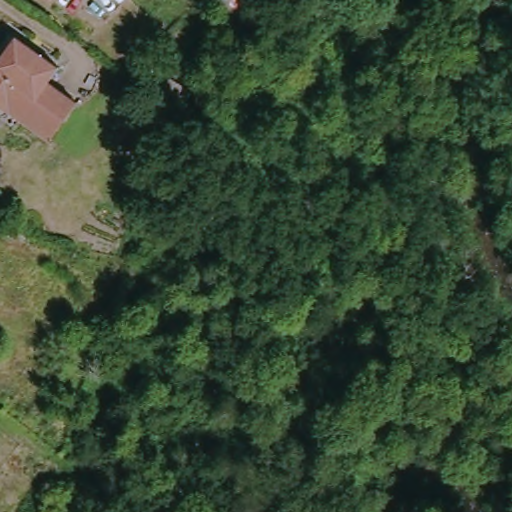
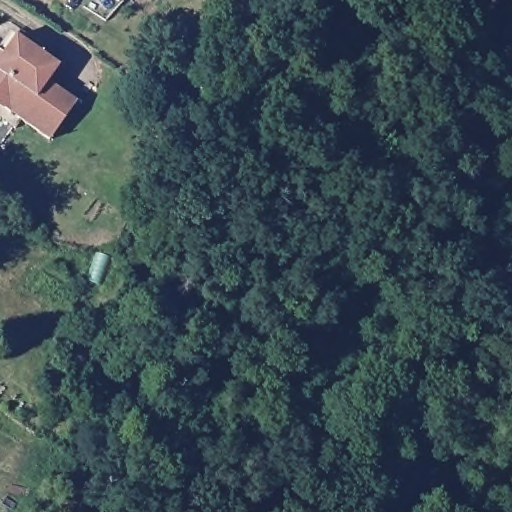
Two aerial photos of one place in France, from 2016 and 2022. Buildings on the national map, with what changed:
unchanged [(54,2),(52,0),(56,0),(54,2)]
unchanged [(218,9),(187,41),(172,25),(196,0),(208,0),(218,9)]
unchanged [(2,56),(11,54),(20,40),(64,68),(55,83),(84,102),(56,141),(0,104),(0,55),(2,56)]

